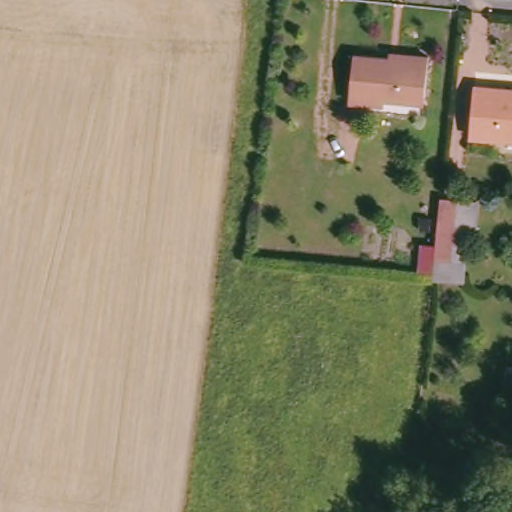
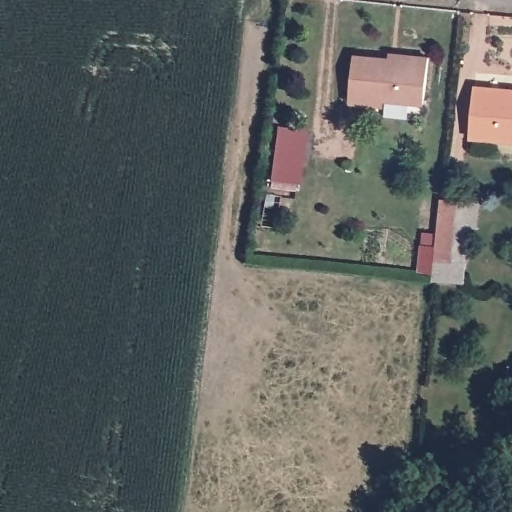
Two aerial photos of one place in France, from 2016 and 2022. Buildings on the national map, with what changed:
unchanged [(356,59),(398,62),(398,55),(429,57),(426,104),(370,100),(369,107),(351,105),(356,59)]
unchanged [(469,136),(474,88),(512,92),(512,141),(469,136)]
new [(276,157),(279,129),(304,133),(300,160),(297,183),(296,191),(271,188),(273,180),(276,157)]
unchanged [(466,228),(460,280),(429,279),(438,197),(479,199),(477,227),(466,228)]
unchanged [(506,395),(508,369),(512,370),(512,396),(506,395)]

